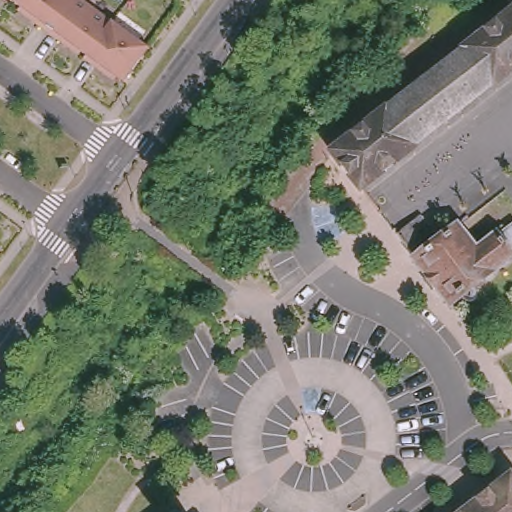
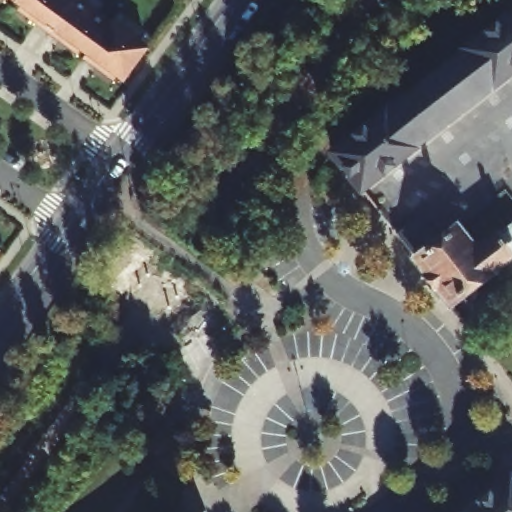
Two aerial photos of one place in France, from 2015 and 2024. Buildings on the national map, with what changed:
unchanged [(11,0),(15,0),(14,2),(11,0)]
unchanged [(22,14),(25,10),(14,2),(15,0),(71,0),(47,32),(22,14)]
unchanged [(75,47),(72,51),(47,32),(71,0),(82,0),(111,21),(85,55),(75,47)]
unchanged [(350,172),(334,151),(354,136),(373,123),(472,46),(512,14),(512,67),(359,184),(350,172)]
unchanged [(122,83),(111,74),(109,78),(82,59),(85,55),(111,21),(147,48),(122,83)]
unchanged [(400,232),(425,214),(446,240),(462,227),(484,256),(512,234),(512,258),(453,302),(400,232)]
unchanged [(0,251),(0,249),(1,250),(0,251)]
unchanged [(467,509),(479,500),(504,479),(511,488),(512,490),(512,512),(464,512),(467,509)]
unchanged [(172,507),(176,512),(167,512),(172,507)]

